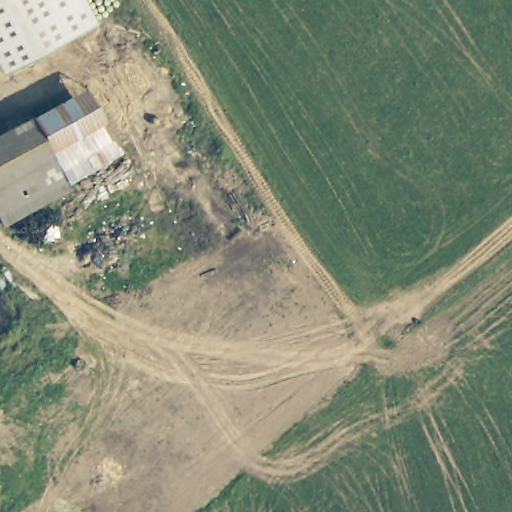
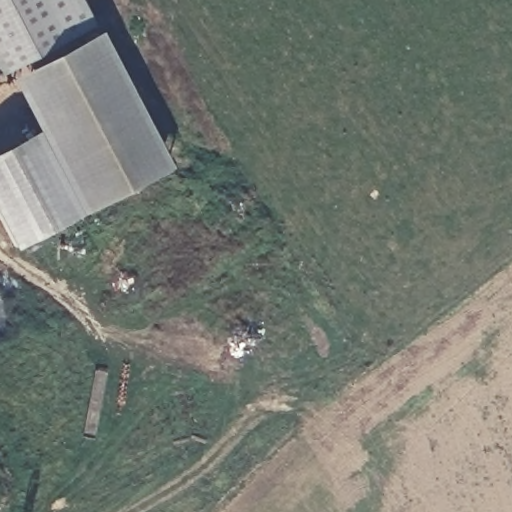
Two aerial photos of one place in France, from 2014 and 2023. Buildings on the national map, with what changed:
unchanged [(94,23),(0,71),(0,0),(82,0),(94,23)]
new [(29,117),(10,78),(100,30),(171,165),(20,254),(0,218),(0,133),(29,117)]

